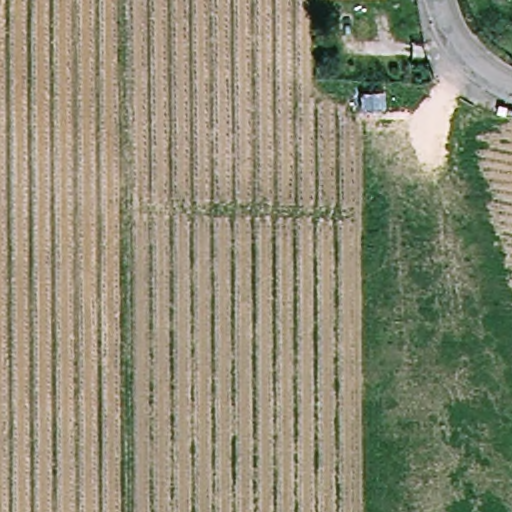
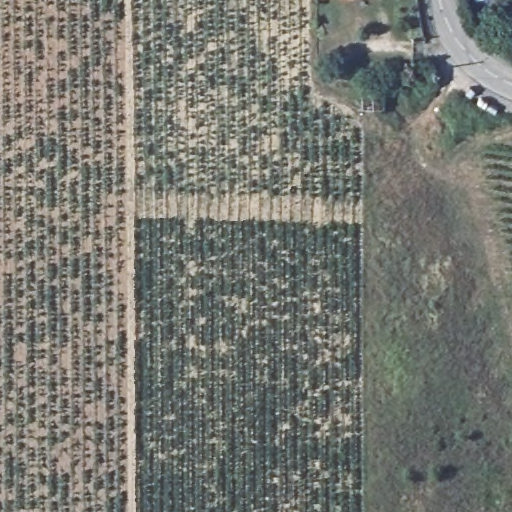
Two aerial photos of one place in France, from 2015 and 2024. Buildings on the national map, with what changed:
unchanged [(386,91),(386,106),(361,106),(361,91),(386,91)]

